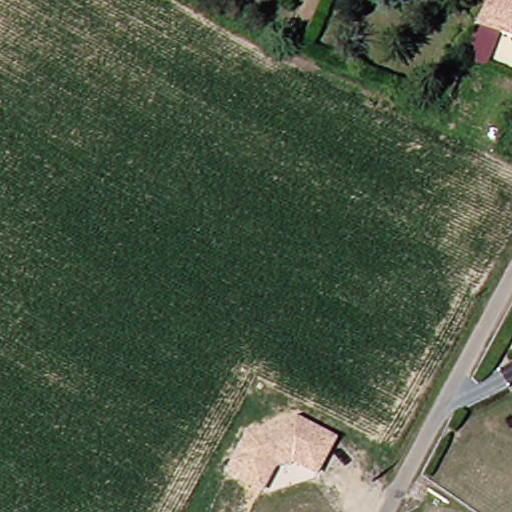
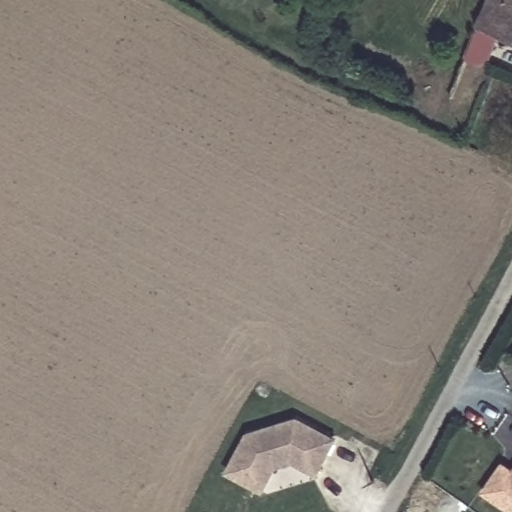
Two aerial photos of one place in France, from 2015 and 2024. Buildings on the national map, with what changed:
unchanged [(481,20),(490,0),(512,0),(512,20),(507,31),(500,28),(484,68),(468,60),(483,21),(481,20)]
unchanged [(512,33),(507,31),(512,20),(512,33)]
unchanged [(316,477),(293,465),(276,471),(264,495),(225,474),(244,436),(298,419),(339,441),(316,477)]
new [(512,473),(512,512),(507,512),(481,493),(501,465),(512,473)]

